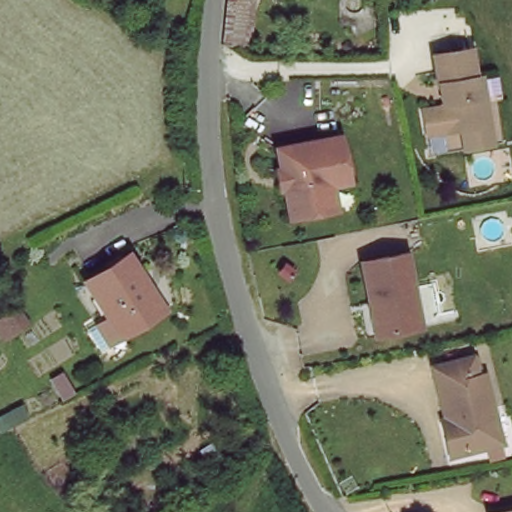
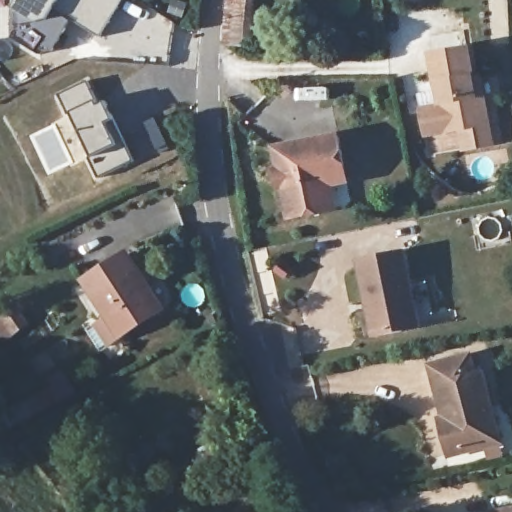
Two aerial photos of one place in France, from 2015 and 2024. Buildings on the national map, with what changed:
new [(121,0),(100,36),(71,19),(51,50),(40,54),(13,37),(13,0),(121,0)]
unchanged [(248,55),(225,54),(226,8),(248,9),(248,55)]
unchanged [(489,120),(481,122),(446,128),(430,51),(467,45),(472,74),(479,73),(489,120)]
new [(86,80),(95,100),(99,106),(105,103),(113,119),(133,160),(98,177),(90,159),(93,156),(73,113),(68,114),(59,95),(86,80)]
unchanged [(309,215),(288,220),(281,189),(278,190),(273,171),(278,170),(273,150),(335,137),(346,182),(328,186),(330,196),(332,211),(309,215)]
unchanged [(402,253),(418,326),(374,335),(358,262),(402,253)]
unchanged [(83,285),(126,257),(138,275),(160,309),(154,313),(118,335),(83,285)]
unchanged [(435,420),(443,417),(429,365),(468,355),(474,376),(481,374),(499,442),(459,452),(447,455),(435,420)]

